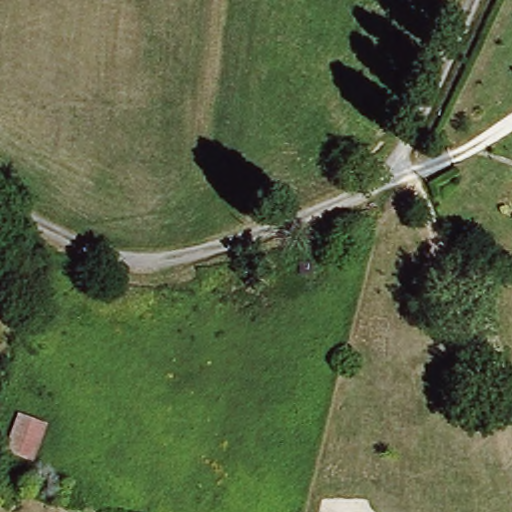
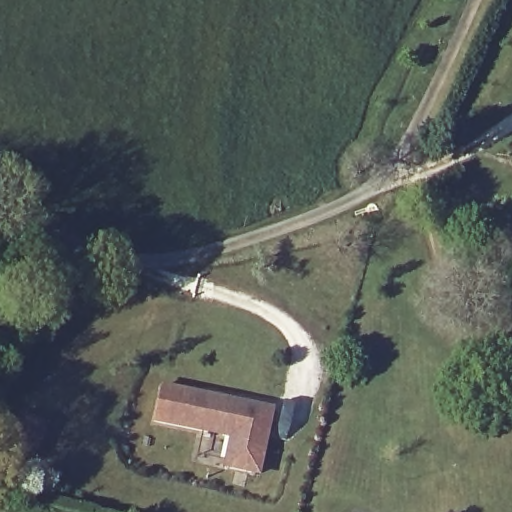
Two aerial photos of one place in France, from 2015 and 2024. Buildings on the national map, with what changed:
new [(275,409),(261,474),(223,467),(229,438),(153,421),(162,383),(275,409)]
unchanged [(35,458),(9,449),(17,423),(43,432),(35,458)]

